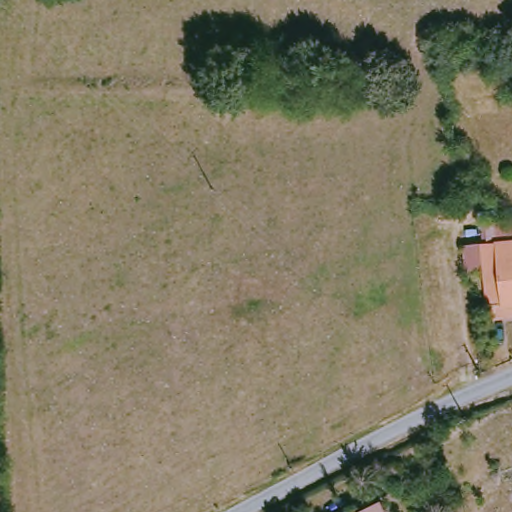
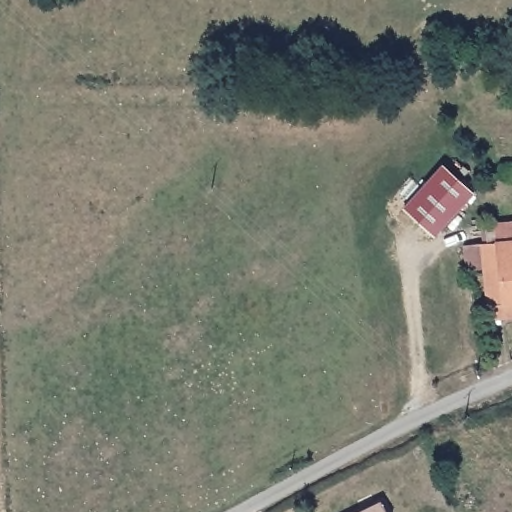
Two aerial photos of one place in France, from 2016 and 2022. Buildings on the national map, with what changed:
new [(406,208),(444,166),(475,195),(437,237),(406,208)]
unchanged [(489,322),(488,311),(484,274),(468,276),(464,251),(489,250),(487,230),(512,227),(512,320),(489,322)]
unchanged [(388,504),(392,512),(372,512),(388,504)]

